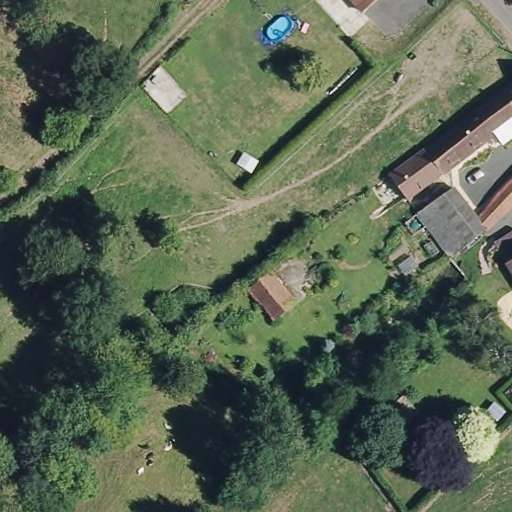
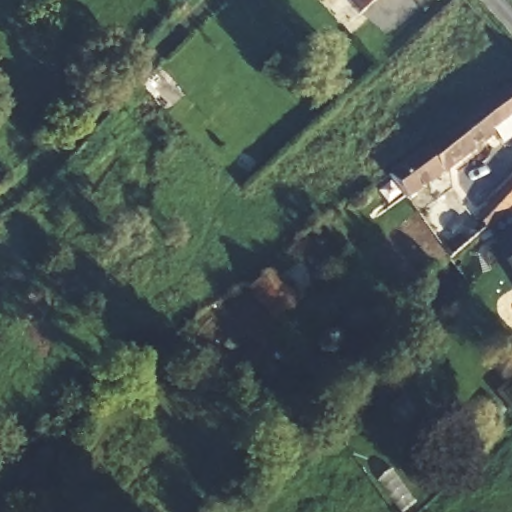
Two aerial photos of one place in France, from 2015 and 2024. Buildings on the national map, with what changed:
unchanged [(352,0),(375,0),(362,12),(352,0)]
unchanged [(501,139),(494,129),(406,195),(389,170),(424,144),(425,146),(490,94),(506,82),(512,77),(512,131),(501,139)]
unchanged [(500,209),(494,217),(451,252),(417,207),(452,181),(477,214),(491,197),(500,187),(512,175),(512,197),(500,209)]
unchanged [(506,263),(493,242),(512,230),(512,273),(506,263)]
unchanged [(295,302),(274,320),(247,290),(269,272),(295,302)]

